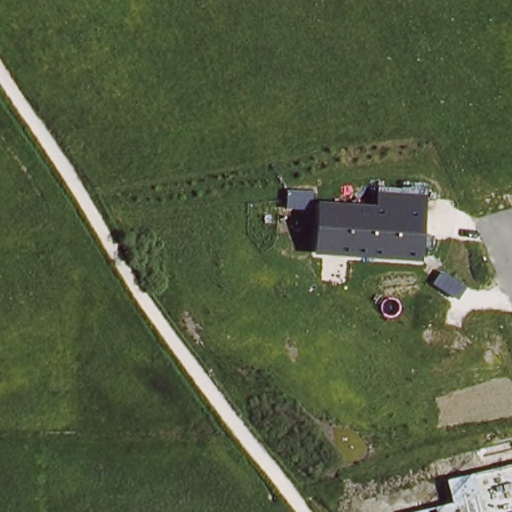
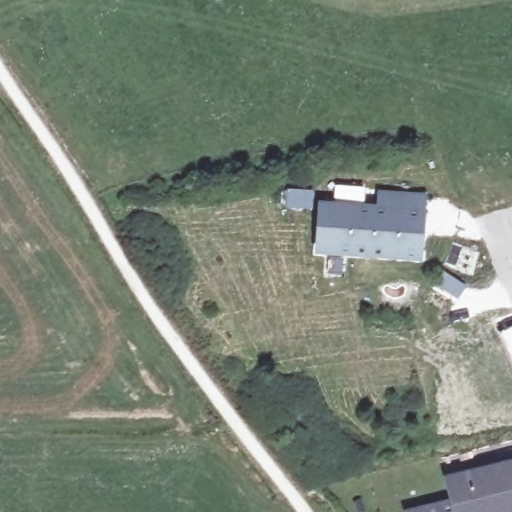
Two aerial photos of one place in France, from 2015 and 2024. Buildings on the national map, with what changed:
unchanged [(425,263),(316,256),(320,202),(378,207),(379,192),(429,196),(425,263)]
new [(448,480),(512,464),(512,512),(418,512),(453,503),(448,480)]

